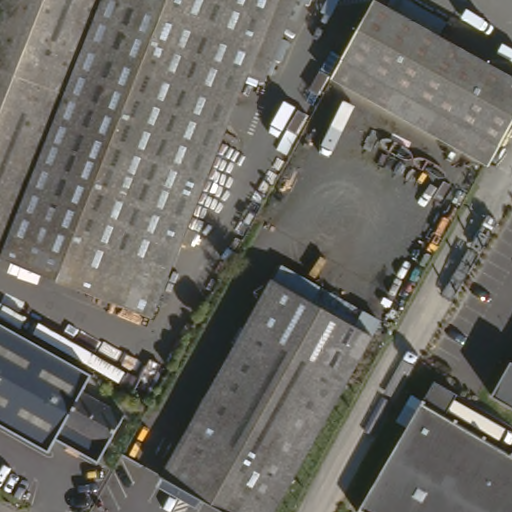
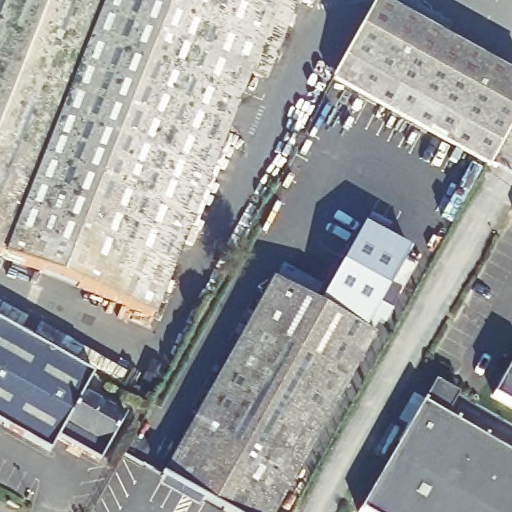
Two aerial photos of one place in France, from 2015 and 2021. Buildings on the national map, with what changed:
unchanged [(275,22),(284,26),(279,40),(268,36),(196,224),(205,227),(200,241),(191,237),(161,313),(0,250),(0,0),(284,0),(275,22)]
unchanged [(496,163),(492,161),(340,72),(380,0),(392,0),(512,68),(512,135),(496,163)]
new [(365,226),(410,250),(381,302),(392,311),(384,326),(377,322),(370,333),(360,327),(361,324),(367,314),(327,292),(365,226)]
unchanged [(270,291),(276,280),(277,277),(283,267),(322,289),(367,314),(361,324),(360,327),(378,338),(372,348),(352,382),(278,512),(227,512),(164,475),(250,325),(270,291)]
unchanged [(87,393),(129,416),(103,462),(62,439),(54,453),(0,424),(0,323),(97,375),(87,393)]
unchanged [(512,365),(512,407),(495,398),(512,365)]
unchanged [(416,390),(427,396),(431,390),(444,367),(455,374),(467,381),(454,403),(512,438),(512,512),(359,512),(416,415),(406,408),(416,390)]

